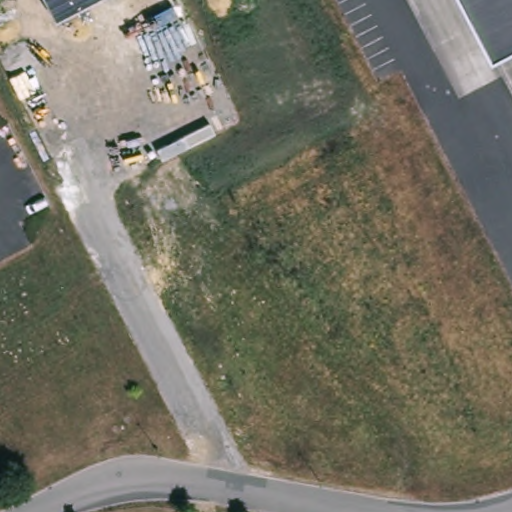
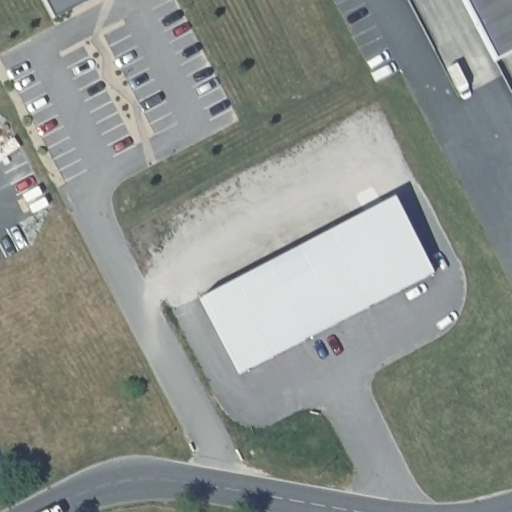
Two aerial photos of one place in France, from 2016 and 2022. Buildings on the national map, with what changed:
unchanged [(44,0),(89,0),(54,18),(44,0)]
unchanged [(493,62),(461,0),(512,0),(512,53),(493,62)]
new [(394,195),(434,271),(240,373),(200,297),(394,195)]

